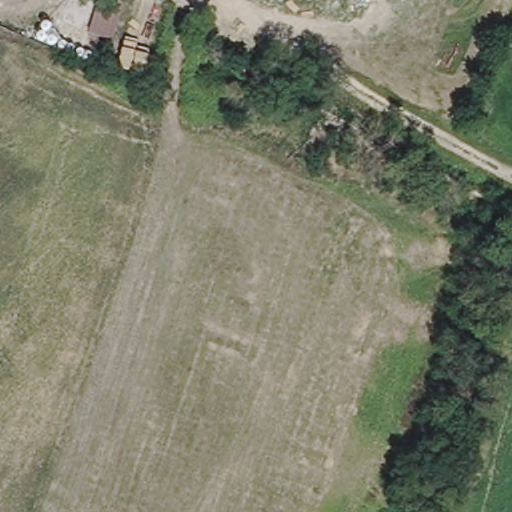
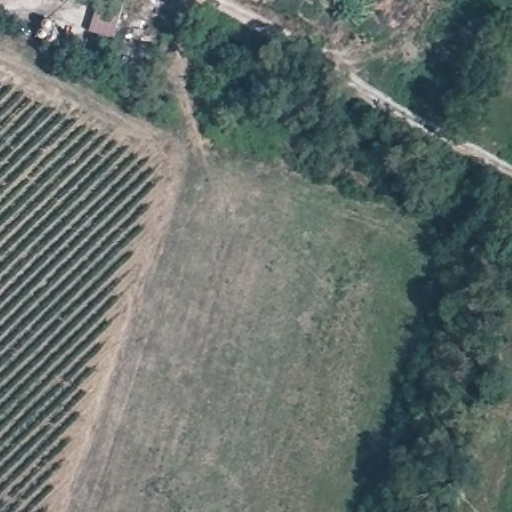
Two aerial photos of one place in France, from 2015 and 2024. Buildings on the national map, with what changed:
unchanged [(85,39),(94,0),(125,0),(112,40),(85,39)]

